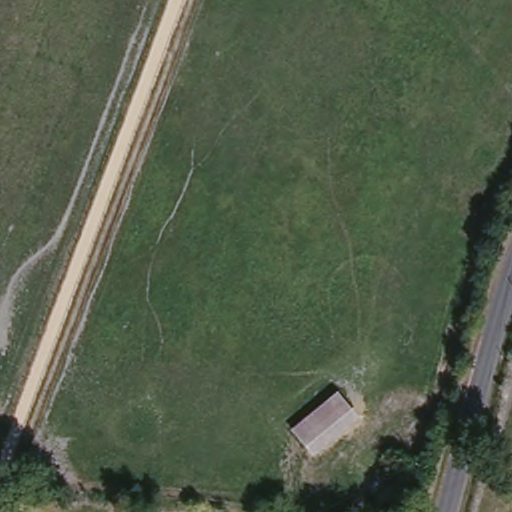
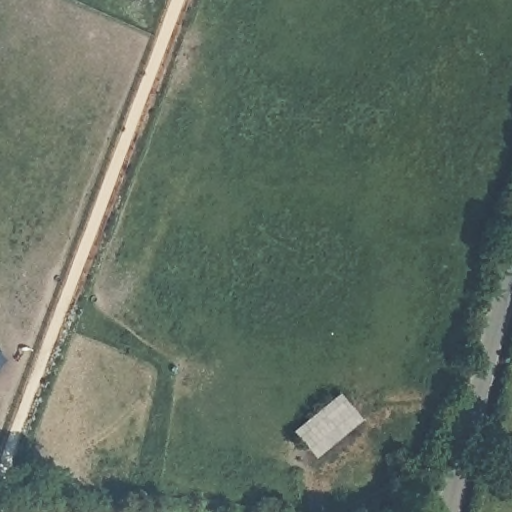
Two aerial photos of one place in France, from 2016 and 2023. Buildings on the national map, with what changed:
unchanged [(291,432),(339,393),(359,420),(313,459),(291,432)]

